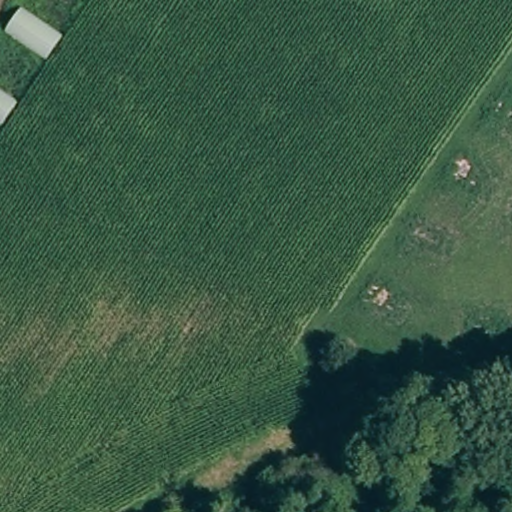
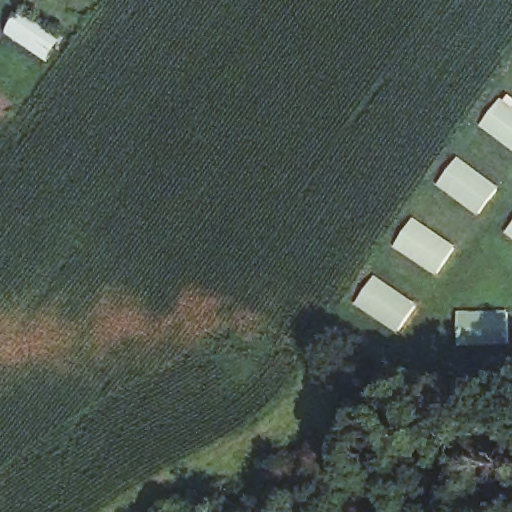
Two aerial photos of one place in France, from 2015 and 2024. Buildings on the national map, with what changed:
unchanged [(64,39),(45,66),(3,37),(20,10),(64,39)]
unchanged [(4,130),(0,128),(0,89),(22,103),(4,130)]
new [(512,107),(512,150),(480,126),(501,98),(512,107)]
new [(437,186),(459,155),(497,183),(475,213),(437,186)]
new [(449,243),(448,246),(452,249),(434,275),(393,246),(413,217),(449,243)]
new [(504,234),(512,224),(512,241),(504,234)]
new [(373,274),(417,305),(397,334),(352,303),(373,274)]
new [(490,345),(459,346),(457,312),(508,310),(509,340),(490,345)]

